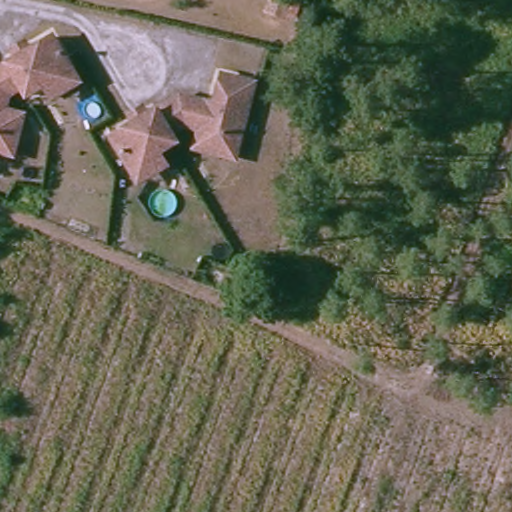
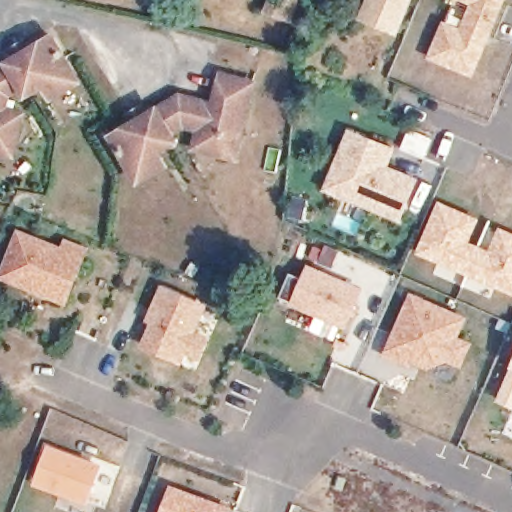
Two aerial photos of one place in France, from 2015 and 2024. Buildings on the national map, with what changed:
new [(357,19),(365,0),(412,0),(399,34),(357,19)]
new [(461,29),(472,4),(463,0),(504,0),(473,77),(427,56),(442,20),(461,29)]
unchanged [(18,60),(12,48),(25,40),(33,51),(55,38),(72,69),(73,71),(81,85),(63,97),(56,102),(47,87),(30,98),(23,91),(11,97),(8,113),(26,117),(20,139),(14,158),(0,155),(0,71),(18,60)]
unchanged [(136,180),(128,166),(112,135),(132,122),(126,107),(139,101),(146,114),(178,93),(204,99),(202,106),(211,107),(220,70),(253,80),(237,136),(232,155),(215,150),(194,145),(196,127),(185,122),(170,131),(175,139),(157,149),(165,162),(136,180)]
new [(397,149),(390,166),(420,178),(402,222),(324,190),(349,129),(397,149)]
new [(469,242),(491,250),(500,227),(512,232),(512,293),(417,254),(440,201),(480,217),(469,242)]
new [(89,247),(66,307),(0,280),(0,271),(17,227),(60,244),(64,237),(89,247)]
new [(365,288),(347,329),(291,304),(310,263),(365,288)]
new [(141,342),(150,324),(145,322),(162,283),(208,305),(197,329),(211,336),(200,361),(187,355),(182,365),(141,342)]
new [(468,315),(458,336),(475,342),(463,368),(447,362),(429,368),(413,362),(412,367),(383,355),(411,292),(468,315)]
new [(512,366),(512,409),(496,402),(512,366)]
new [(47,443),(102,464),(89,507),(33,485),(47,443)]
new [(230,512),(160,512),(171,486),(232,507),(230,512)]

